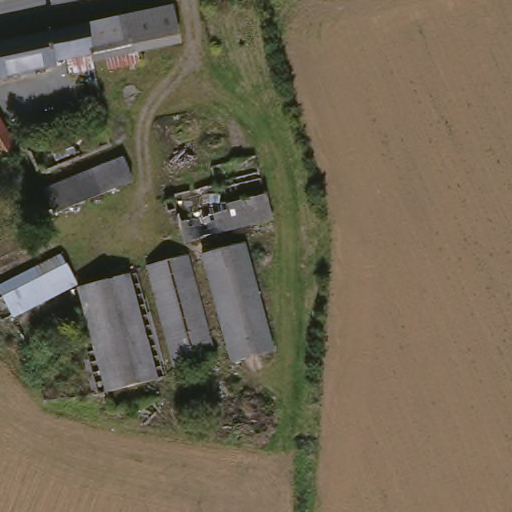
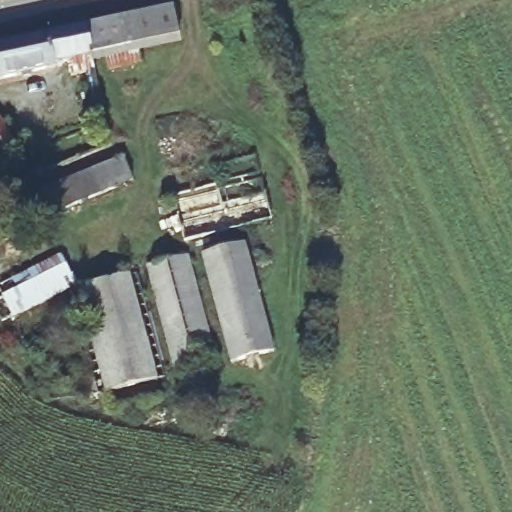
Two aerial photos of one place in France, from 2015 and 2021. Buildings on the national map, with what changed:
unchanged [(126,46),(119,15),(168,4),(172,3),(179,33),(126,46)]
unchanged [(65,60),(54,63),(54,67),(0,79),(0,43),(82,24),(119,15),(126,46),(99,52),(89,54),(92,70),(69,76),(65,60)]
unchanged [(0,156),(0,125),(14,147),(0,156)]
unchanged [(54,210),(46,183),(126,162),(134,186),(54,210)]
unchanged [(191,242),(184,217),(267,194),(272,215),(191,242)]
unchanged [(231,362),(225,343),(200,258),(244,247),(270,336),(274,351),(231,362)]
unchanged [(150,266),(189,256),(213,345),(215,354),(178,366),(177,360),(150,266)]
unchanged [(21,318),(4,292),(58,259),(73,284),(21,318)]
unchanged [(71,294),(136,276),(162,364),(164,374),(120,388),(123,404),(107,407),(102,390),(92,391),(91,385),(71,294)]

